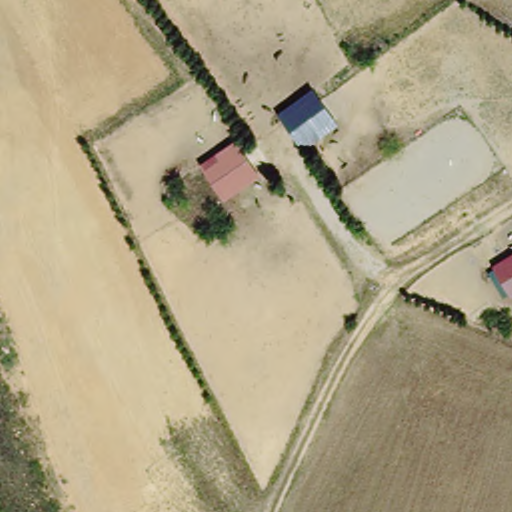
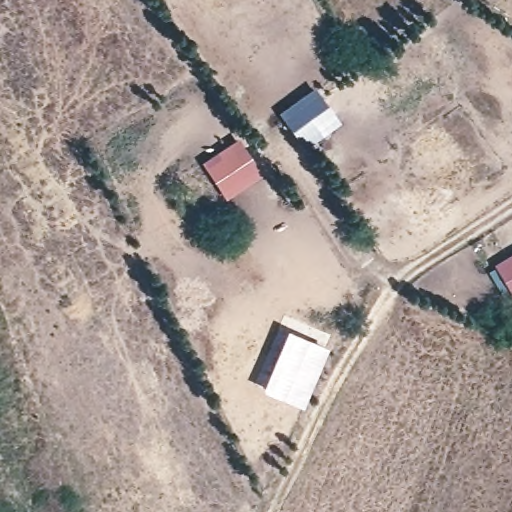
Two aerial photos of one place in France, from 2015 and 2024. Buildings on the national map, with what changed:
unchanged [(343,119),(309,150),(278,110),(314,85),(343,119)]
unchanged [(202,164),(239,140),(262,175),(226,200),(202,164)]
unchanged [(512,251),(512,291),(492,265),(512,251)]
new [(302,407),(260,390),(286,330),(327,347),(302,407)]

